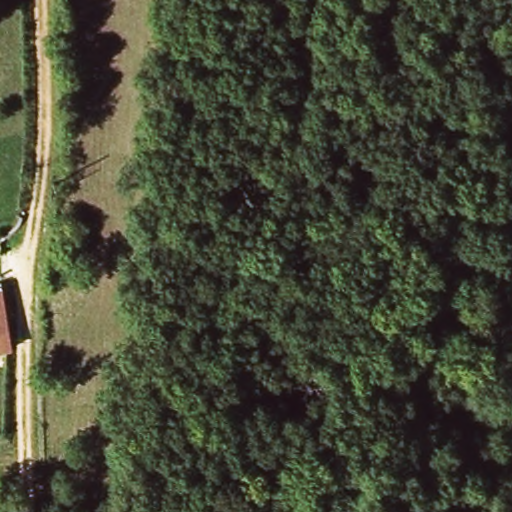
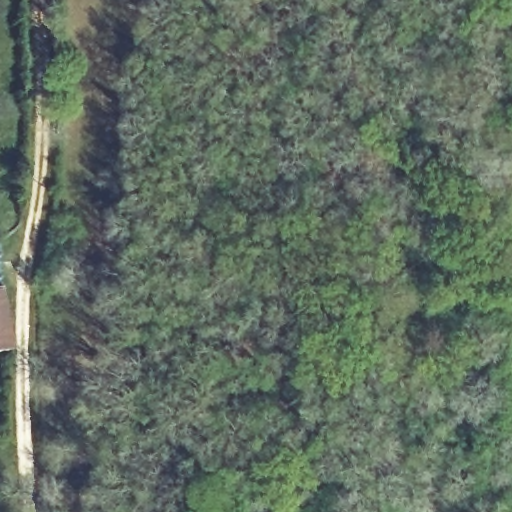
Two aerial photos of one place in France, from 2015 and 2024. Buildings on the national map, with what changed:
unchanged [(9,355),(0,356),(0,291),(3,291),(9,355)]

